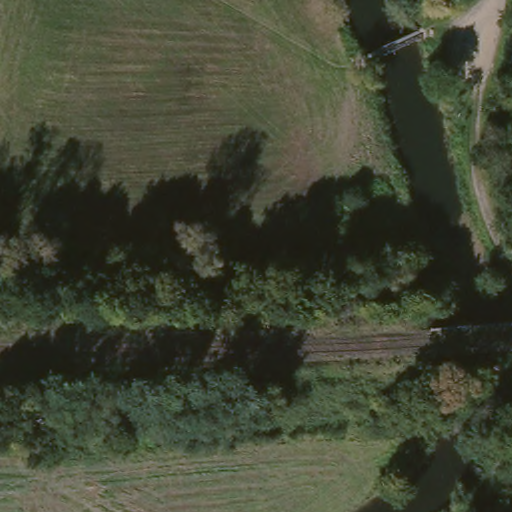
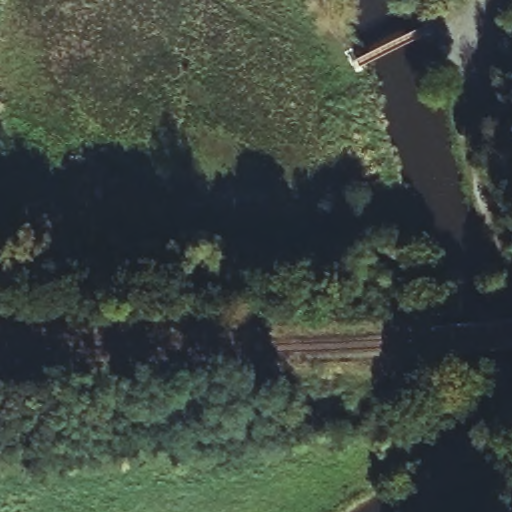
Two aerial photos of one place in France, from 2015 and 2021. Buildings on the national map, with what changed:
[]

